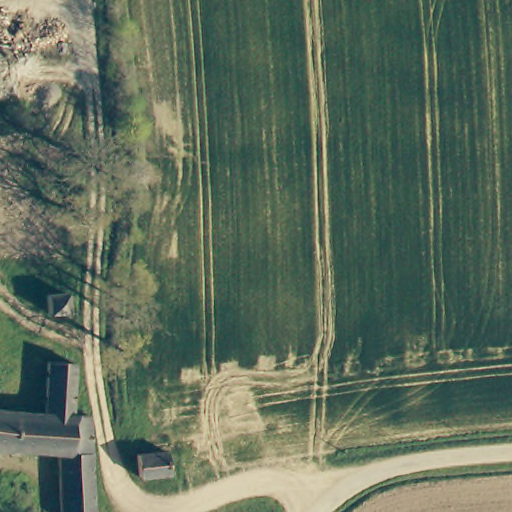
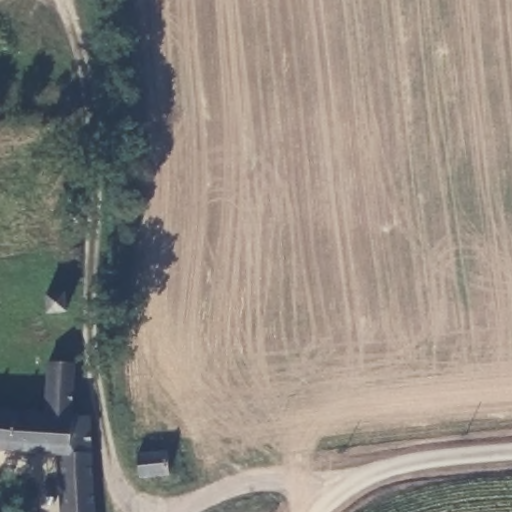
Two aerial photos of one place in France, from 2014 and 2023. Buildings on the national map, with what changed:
unchanged [(62,310),(44,312),(44,294),(62,292),(62,310)]
unchanged [(59,512),(57,459),(0,455),(0,416),(42,418),(44,367),(71,368),(69,420),(87,422),(92,512),(59,512)]
unchanged [(165,452),(166,475),(137,476),(135,455),(165,452)]

